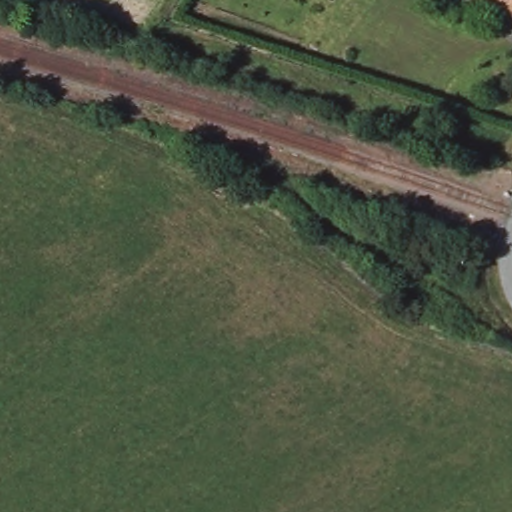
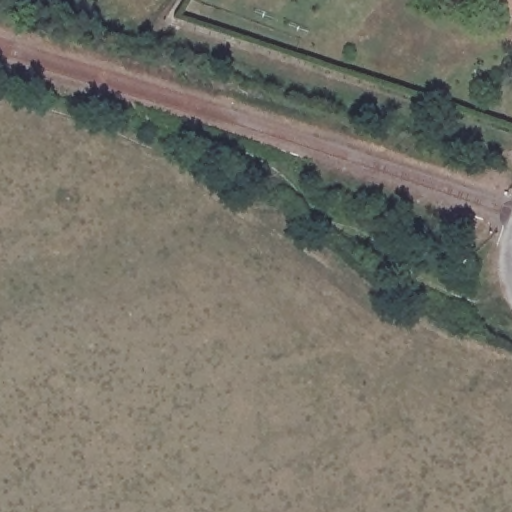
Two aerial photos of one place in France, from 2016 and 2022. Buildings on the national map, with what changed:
unchanged [(512,4),(506,0),(512,0),(512,4)]

